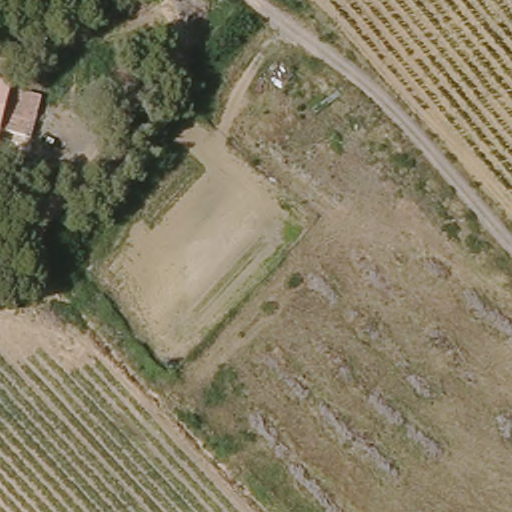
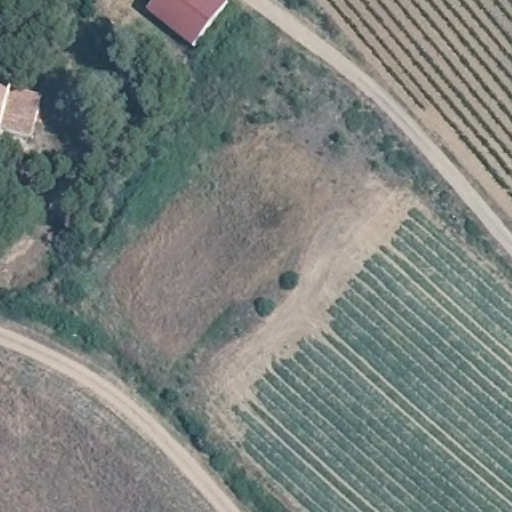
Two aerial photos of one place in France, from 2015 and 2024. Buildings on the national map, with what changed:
new [(230,5),(194,50),(148,13),(158,0),(224,0),(230,5)]
unchanged [(19,84),(7,130),(0,129),(0,78),(19,84)]

